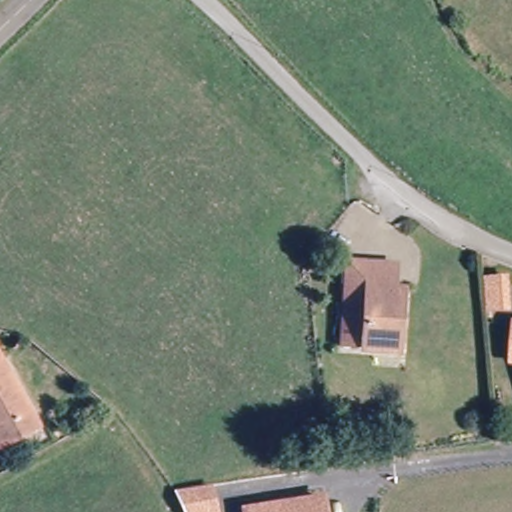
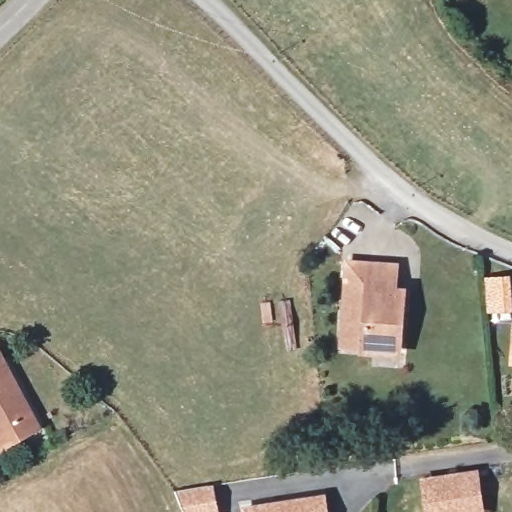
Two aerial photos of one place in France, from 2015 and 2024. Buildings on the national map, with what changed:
unchanged [(403,347),(341,343),(343,256),(383,259),(399,260),(398,286),(406,286),(403,347)]
unchanged [(480,273),(510,274),(510,307),(484,307),(480,273)]
unchanged [(38,427),(0,448),(0,361),(1,360),(38,427)]
new [(480,512),(428,512),(423,484),(475,477),(480,512)]
unchanged [(184,512),(175,489),(213,483),(219,512),(184,512)]
unchanged [(327,493),(330,512),(242,512),(241,507),(327,493)]

